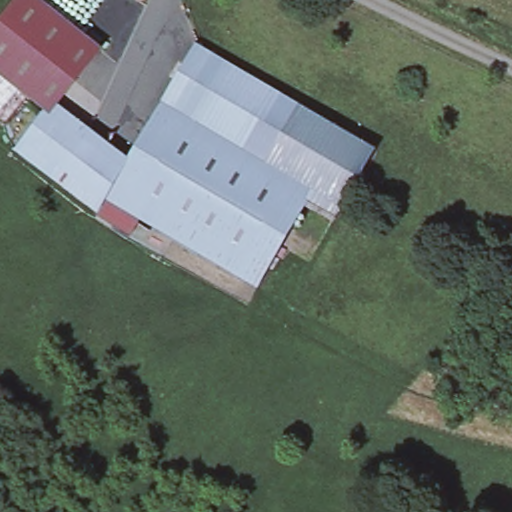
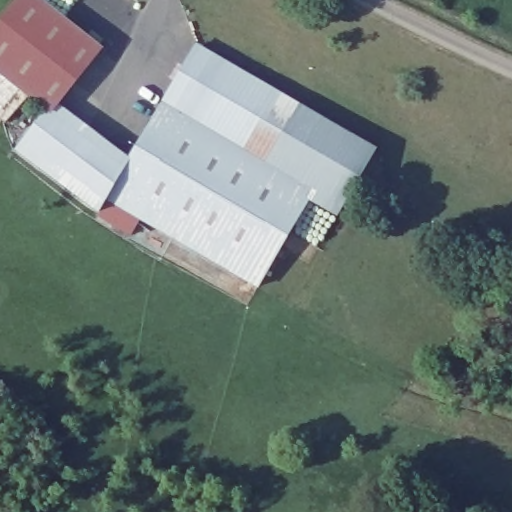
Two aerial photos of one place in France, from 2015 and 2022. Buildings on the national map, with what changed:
unchanged [(10,0),(35,0),(93,45),(68,77),(0,23),(0,13),(10,0)]
unchanged [(49,101),(43,110),(40,108),(0,77),(0,23),(68,77),(49,101)]
unchanged [(312,187),(161,96),(193,40),(374,146),(341,204),(312,187)]
unchanged [(114,226),(91,212),(93,210),(93,208),(10,147),(40,108),(43,110),(49,101),(124,157),(161,96),(312,187),(288,229),(253,286),(137,217),(127,234),(114,226)]
unchanged [(341,204),(316,247),(288,229),(313,187),(341,204)]

